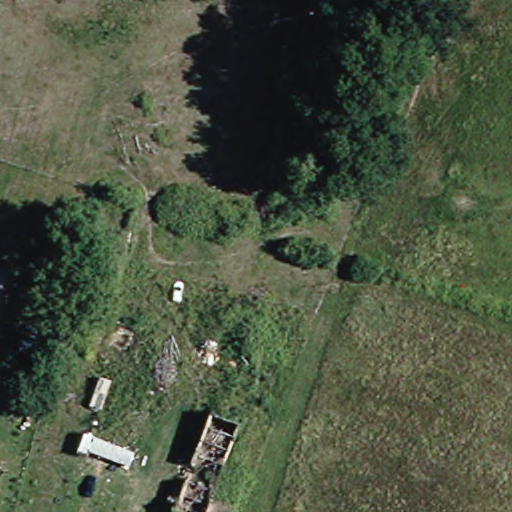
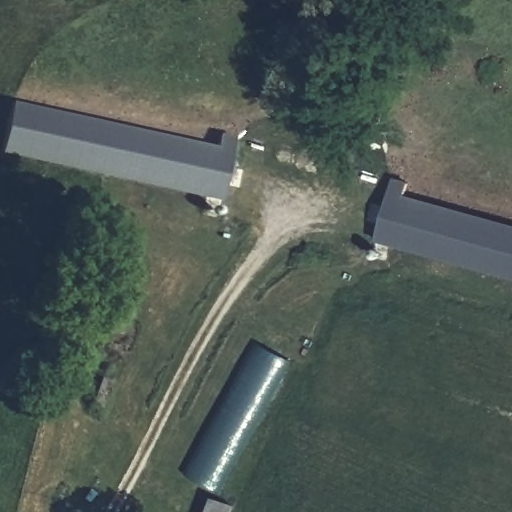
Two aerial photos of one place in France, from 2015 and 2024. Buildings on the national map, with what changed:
new [(217,199),(0,158),(0,109),(226,151),(217,199)]
new [(512,225),(512,276),(372,238),(384,190),(512,225)]
new [(219,491),(186,473),(261,344),(292,362),(219,491)]
demolished [(206,502),(220,506),(218,512),(168,512),(210,394),(239,407),(206,502)]

